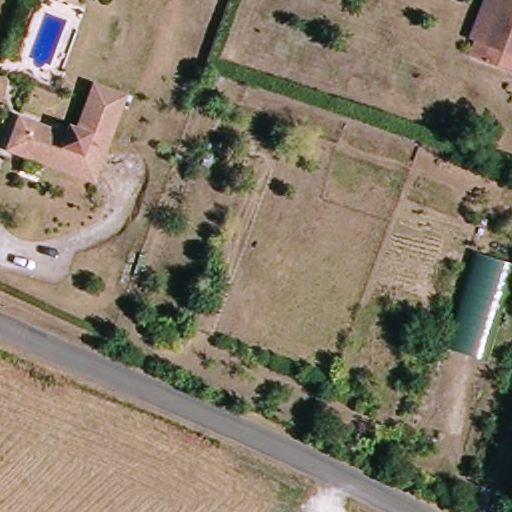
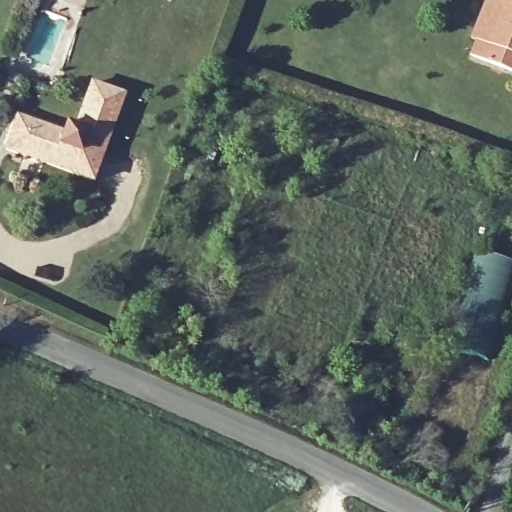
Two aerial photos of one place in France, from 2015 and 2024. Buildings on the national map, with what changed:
unchanged [(33,3),(14,60),(0,56),(0,54),(18,0),(25,0),(33,3)]
unchanged [(474,44),(470,43),(485,0),(512,0),(512,75),(470,60),(474,44)]
unchanged [(16,120),(27,124),(66,137),(74,135),(91,86),(122,97),(92,183),(16,156),(4,152),(16,120)]
unchanged [(510,260),(484,361),(439,345),(468,252),(510,260)]

